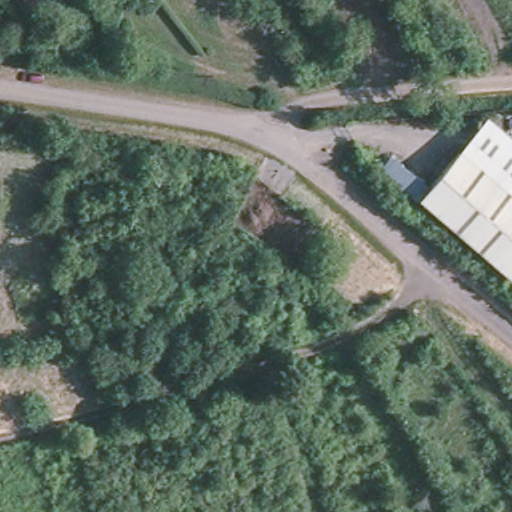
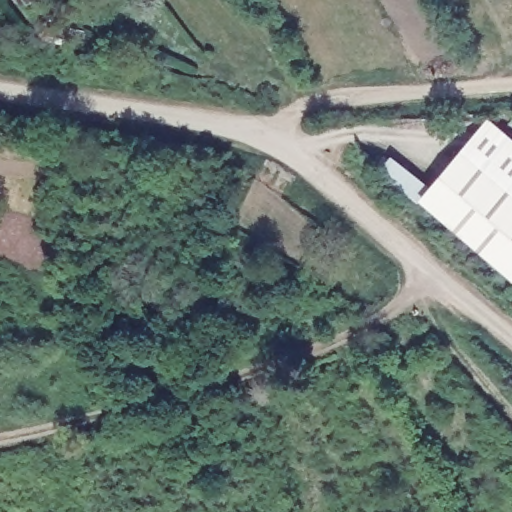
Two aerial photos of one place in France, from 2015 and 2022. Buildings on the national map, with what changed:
unchanged [(24,0),(31,0),(26,3),(24,0)]
unchanged [(495,124),(512,138),(512,193),(468,156),(495,124)]
unchanged [(505,265),(430,201),(466,158),(468,156),(512,193),(512,271),(505,265)]
unchanged [(391,167),(398,159),(437,190),(429,200),(424,206),(385,174),(391,167)]

